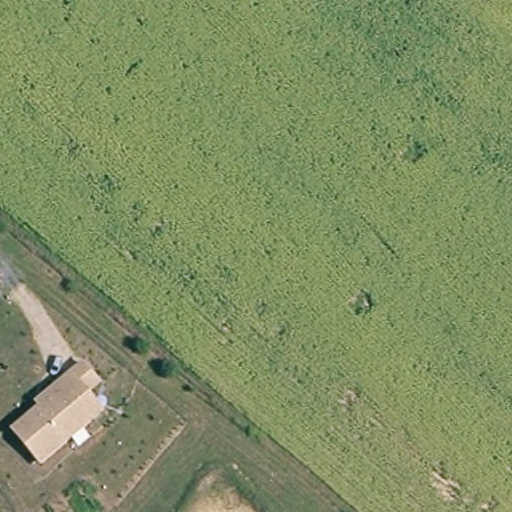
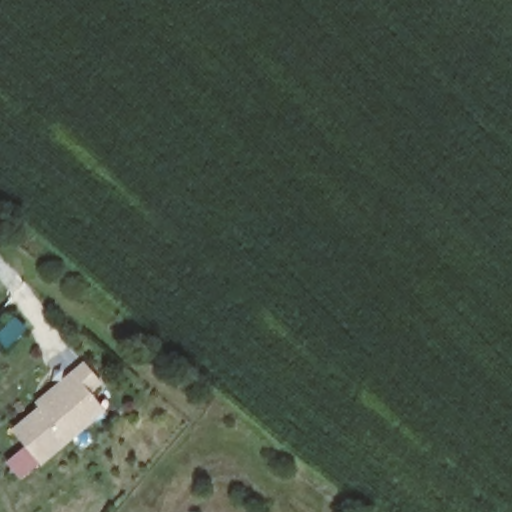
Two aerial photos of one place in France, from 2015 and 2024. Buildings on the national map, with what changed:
unchanged [(102,386),(91,395),(97,402),(106,413),(94,422),(44,466),(16,432),(44,410),(40,405),(62,386),(86,366),(102,386)]

